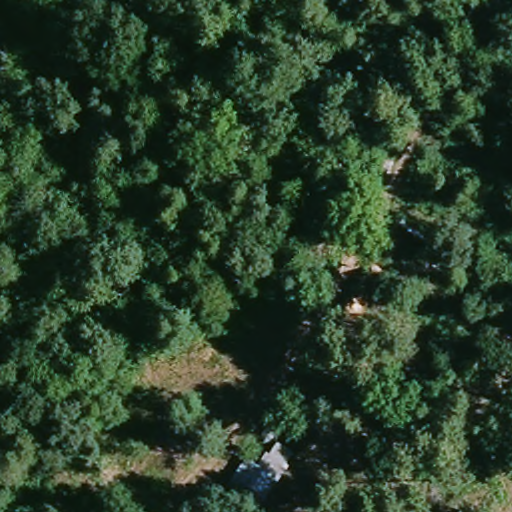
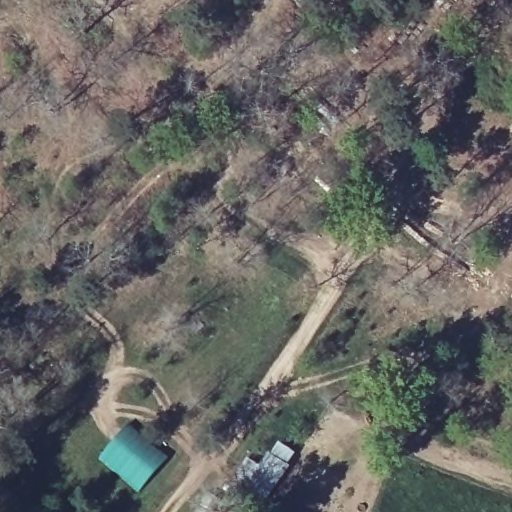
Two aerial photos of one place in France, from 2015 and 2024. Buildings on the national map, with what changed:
new [(129,424),(167,457),(139,489),(102,457),(129,424)]
unchanged [(274,482),(256,508),(230,491),(247,464),(274,482)]

